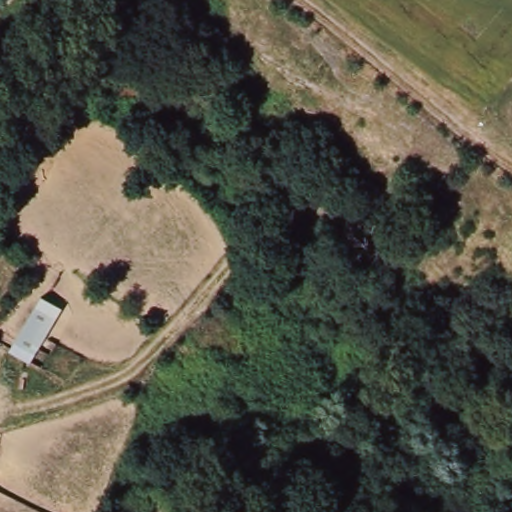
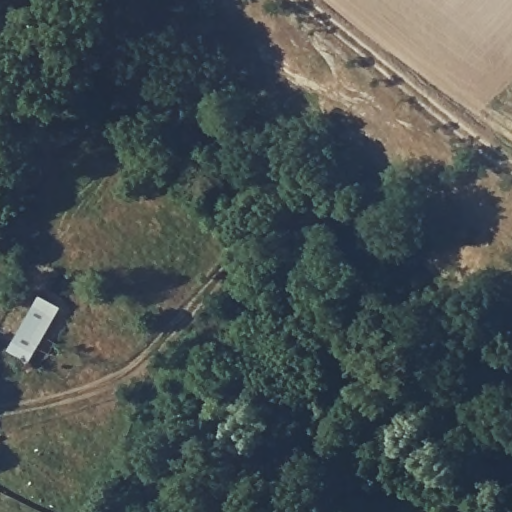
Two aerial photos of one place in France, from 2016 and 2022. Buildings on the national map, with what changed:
unchanged [(27,360),(6,347),(37,292),(61,305),(27,360)]

